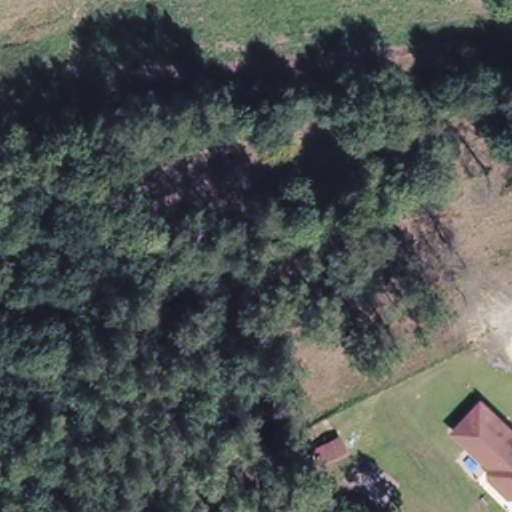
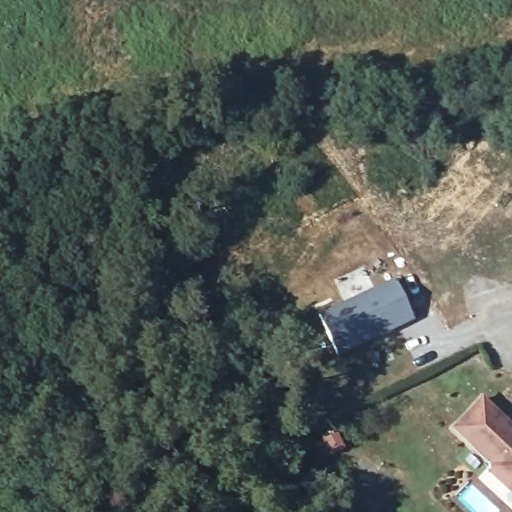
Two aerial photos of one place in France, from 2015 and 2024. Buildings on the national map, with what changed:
new [(414,321),(338,356),(317,313),(395,279),(414,321)]
unchanged [(493,460),(454,427),(482,396),(512,423),(512,490),(493,473),(493,460)]

